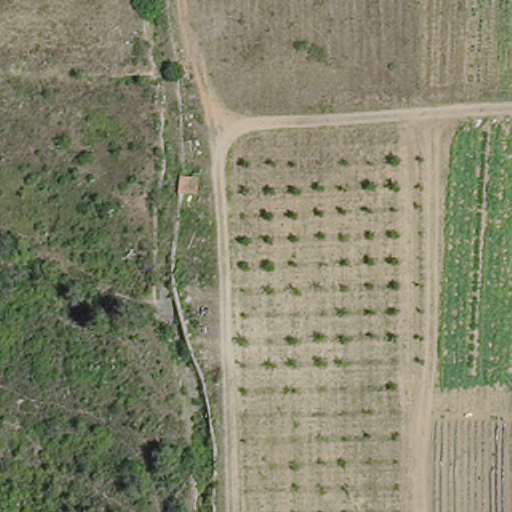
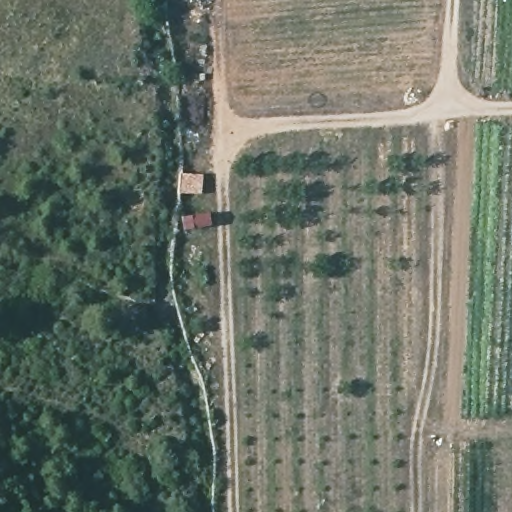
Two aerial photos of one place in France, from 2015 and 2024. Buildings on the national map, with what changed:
unchanged [(196,176),(198,193),(179,193),(180,176),(196,176)]

